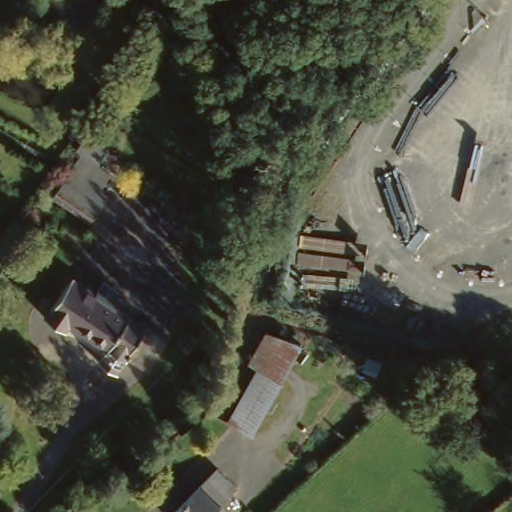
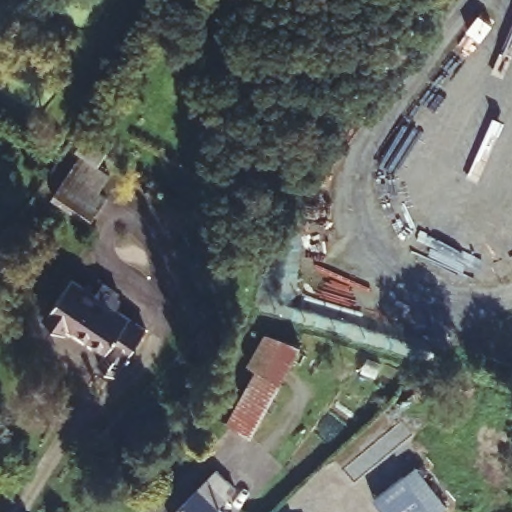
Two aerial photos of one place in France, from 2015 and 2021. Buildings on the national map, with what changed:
unchanged [(93,219),(53,189),(92,130),(113,141),(102,159),(116,170),(106,186),(116,192),(93,219)]
unchanged [(102,349),(107,342),(74,315),(69,321),(54,309),(80,273),(149,324),(120,361),(115,368),(97,356),(102,349)]
unchanged [(228,425),(254,374),(242,368),(263,328),(296,347),(249,435),(228,425)]
unchanged [(220,465),(240,485),(222,505),(229,512),(177,512),(220,465)]
new [(412,468),(446,510),(445,512),(380,512),(372,501),(412,468)]

